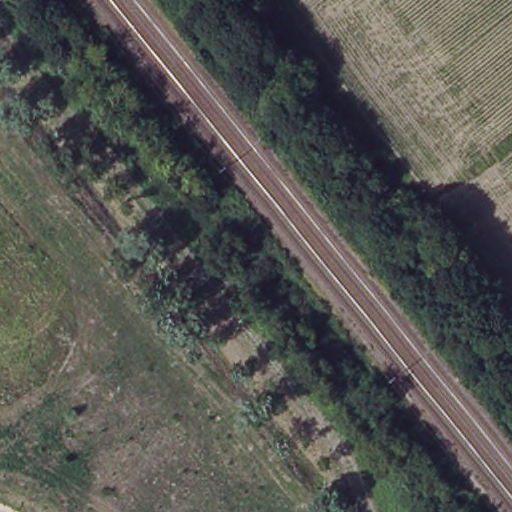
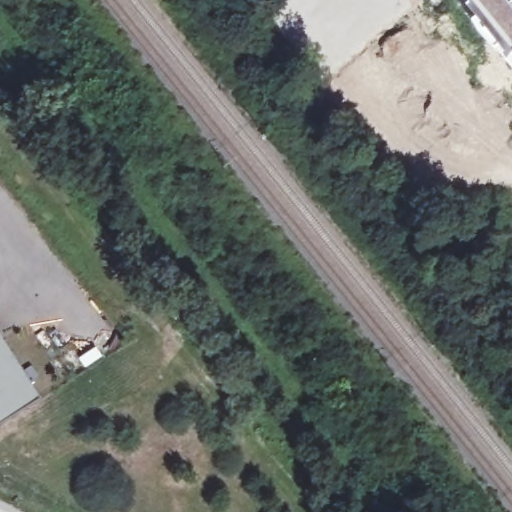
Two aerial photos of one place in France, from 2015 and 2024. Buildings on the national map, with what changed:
new [(512,68),(504,59),(477,27),(456,0),(512,0),(512,68)]
new [(40,400),(0,426),(0,337),(40,400)]

